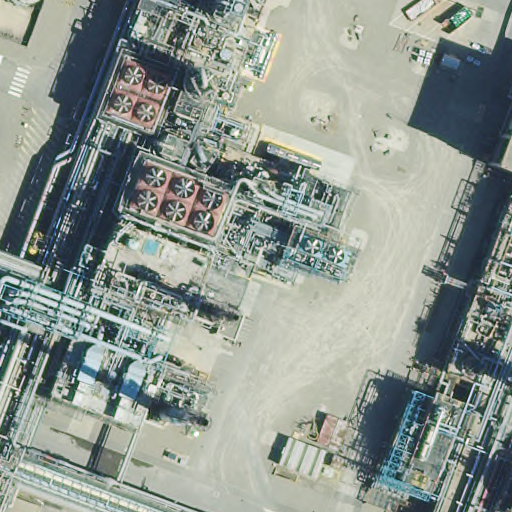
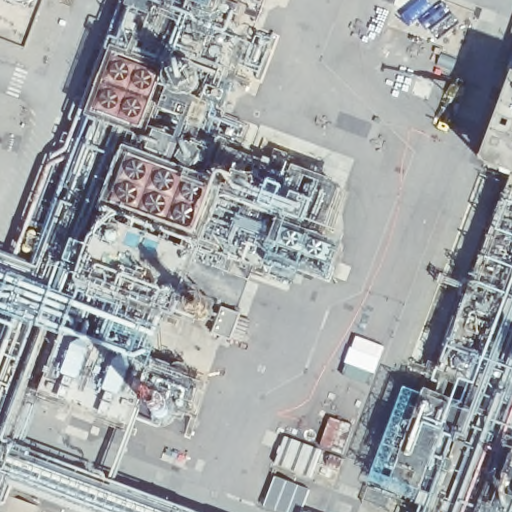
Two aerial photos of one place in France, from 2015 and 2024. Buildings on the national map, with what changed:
unchanged [(228,21),(245,26),(225,86),(230,89),(203,158),(282,186),(290,162),(349,186),(330,237),(285,222),(262,270),(225,257),(212,300),(240,313),(232,335),(207,326),(172,313),(154,361),(204,381),(192,419),(138,404),(132,424),(47,394),(3,512),(0,512),(0,316),(0,255),(32,265),(120,0),(231,0),(228,21)]
unchanged [(512,84),(512,175),(482,165),(512,84)]
unchanged [(371,480),(407,387),(433,395),(512,193),(512,512),(428,512),(432,504),(371,480)]
unchanged [(313,447),(327,453),(317,476),(278,465),(297,409),(323,417),(313,447)]

